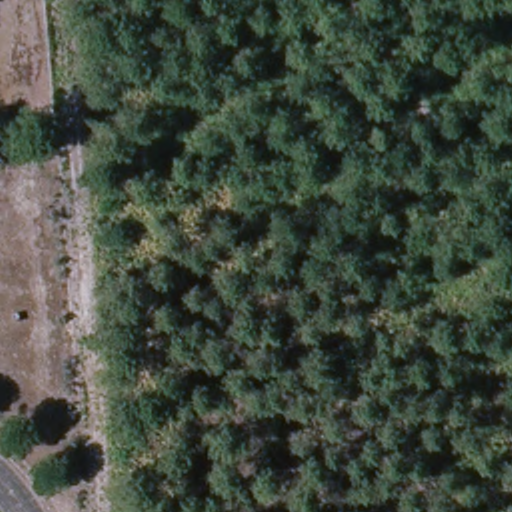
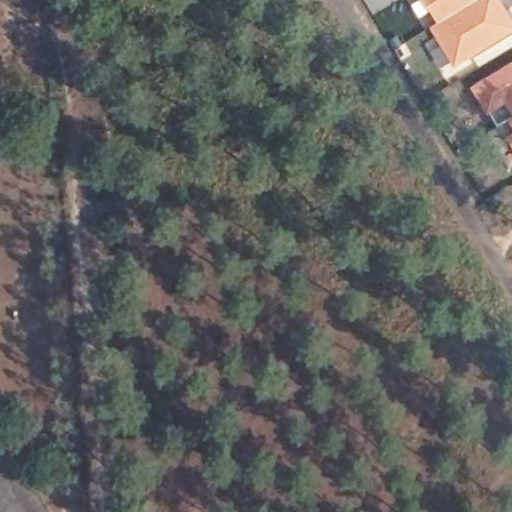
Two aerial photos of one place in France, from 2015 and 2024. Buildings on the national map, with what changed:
new [(436,22),(423,0),(473,0),(436,22)]
new [(436,22),(473,0),(501,0),(512,17),(512,33),(453,66),(429,26),(436,22)]
new [(512,61),(512,115),(510,116),(503,105),(488,115),(469,86),(512,61)]
new [(507,118),(510,116),(512,115),(512,127),(507,118)]
new [(512,133),(512,146),(506,136),(512,133)]

